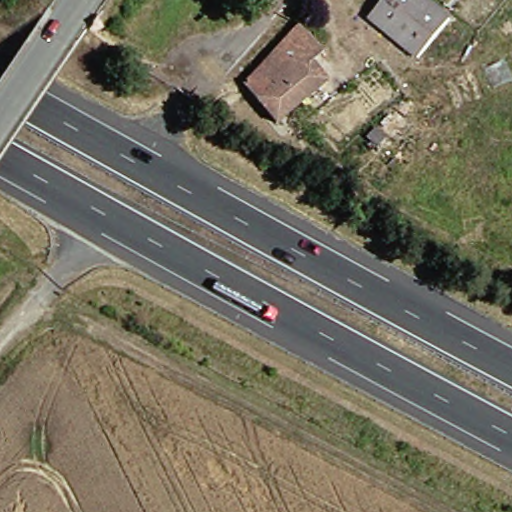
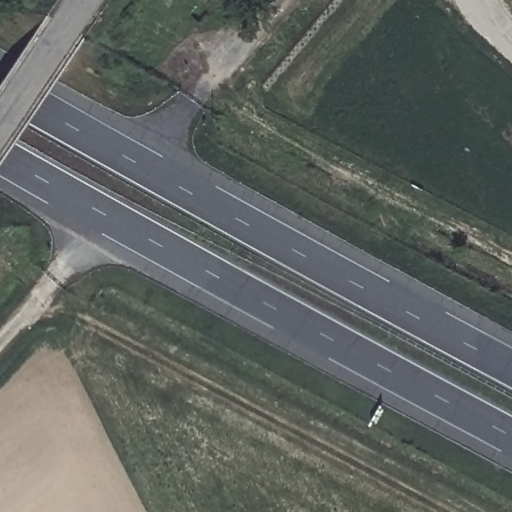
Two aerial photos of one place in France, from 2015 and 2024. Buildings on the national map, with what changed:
demolished [(374,18),(387,0),(428,0),(451,18),(439,34),(423,55),(374,18)]
demolished [(295,31),(322,56),(312,68),(327,81),(287,127),(244,88),(295,31)]

